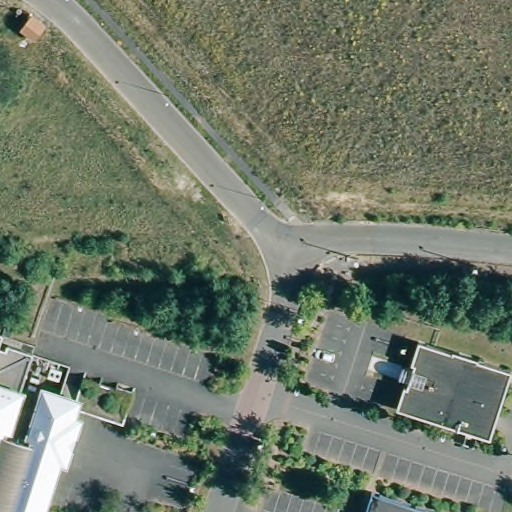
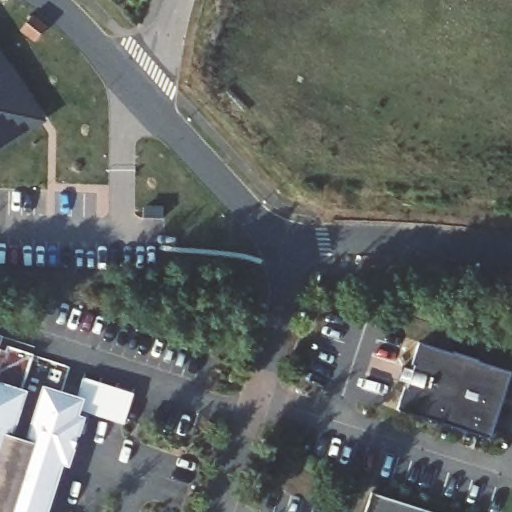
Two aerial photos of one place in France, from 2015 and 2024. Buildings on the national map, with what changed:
unchanged [(20,30),(30,16),(45,27),(34,41),(20,30)]
new [(46,122),(0,154),(0,51),(46,122)]
unchanged [(406,387),(411,388),(419,366),(414,363),(420,344),(512,372),(512,375),(493,440),(399,411),(406,387)]
unchanged [(0,512),(0,365),(3,366),(5,358),(30,365),(8,442),(30,448),(45,400),(75,408),(81,385),(130,398),(123,427),(72,413),(70,424),(71,430),(71,435),(70,441),(69,446),(67,451),(65,456),(62,461),(59,466),(46,512),(0,512)]
unchanged [(435,512),(364,512),(370,492),(435,512)]

